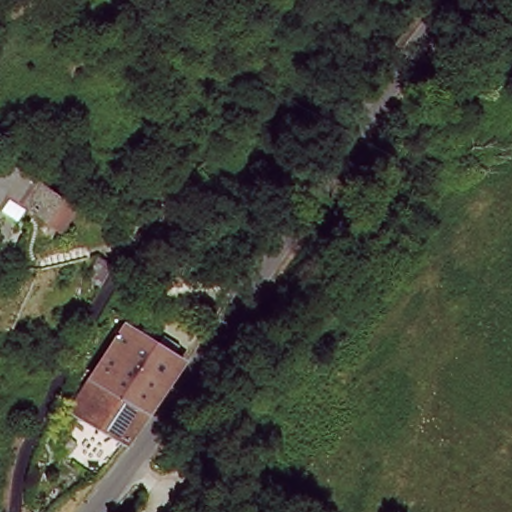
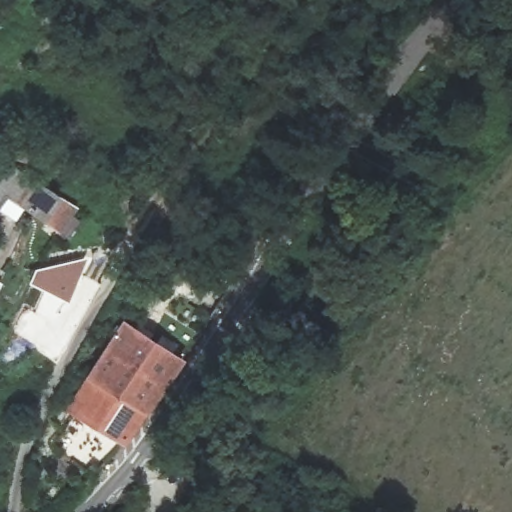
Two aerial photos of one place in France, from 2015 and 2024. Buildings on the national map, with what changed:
unchanged [(80,210),(65,232),(9,195),(5,200),(9,203),(1,215),(0,214),(0,170),(5,163),(80,210)]
unchanged [(100,252),(114,262),(101,285),(85,276),(100,252)]
new [(70,302),(31,285),(35,272),(79,258),(87,261),(70,302)]
unchanged [(128,322),(184,362),(127,444),(74,407),(128,322)]

